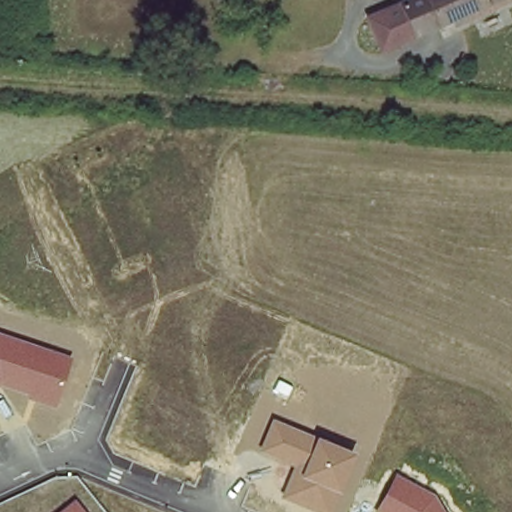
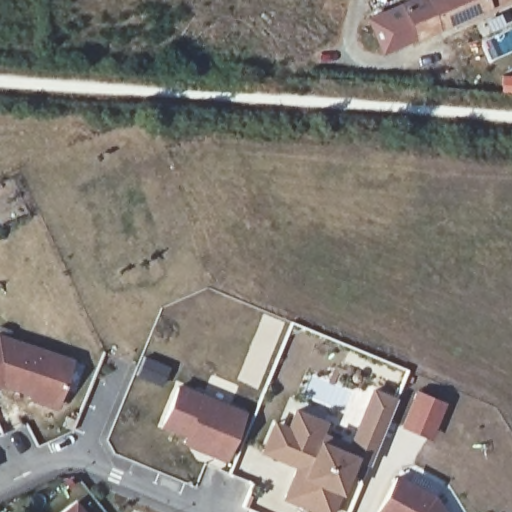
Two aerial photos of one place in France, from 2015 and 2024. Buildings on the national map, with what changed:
unchanged [(363,45),(355,28),(419,0),(512,0),(512,2),(455,29),(452,21),(384,53),(376,39),(363,45)]
unchanged [(74,358),(56,407),(3,388),(0,389),(0,333),(74,358)]
new [(160,423),(175,385),(240,411),(221,456),(204,449),(181,440),(184,433),(160,423)]
new [(373,389),(399,399),(376,460),(362,455),(350,450),(373,389)]
new [(431,439),(401,427),(416,390),(447,402),(431,439)]
unchanged [(295,465),(260,451),(273,418),(291,426),(298,409),(333,424),(326,441),(350,450),(362,455),(340,512),(318,512),(282,498),(295,465)]
unchanged [(395,475),(438,495),(449,512),(377,512),(395,475)]
unchanged [(76,498),(87,512),(58,512),(76,498)]

